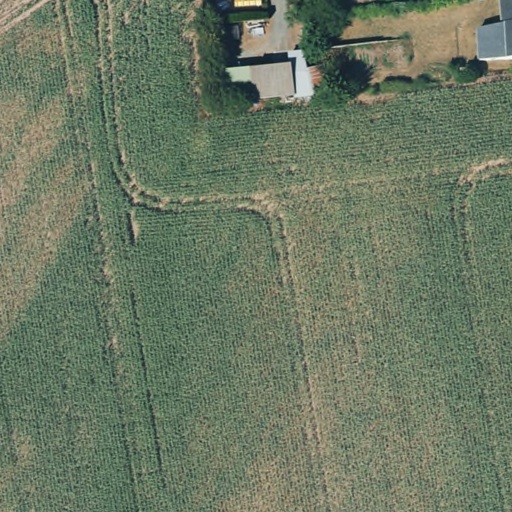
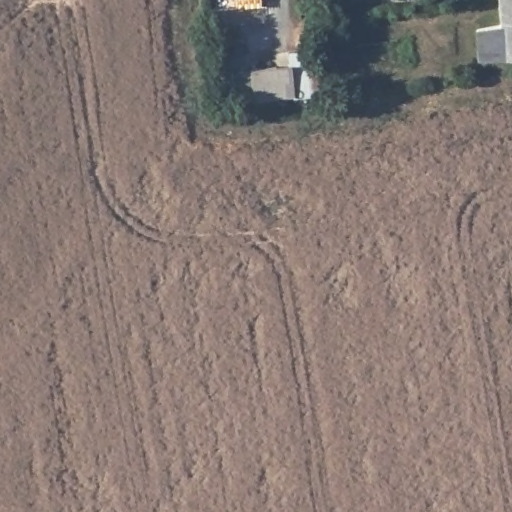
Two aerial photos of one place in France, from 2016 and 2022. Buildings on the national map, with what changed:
unchanged [(501,0),(512,0),(512,24),(503,25),(501,0)]
unchanged [(512,57),(482,59),(479,28),(503,25),(512,24),(512,57)]
unchanged [(295,104),(294,95),(255,99),(251,67),(288,64),(287,50),(305,48),(308,67),(326,65),(330,100),(295,104)]

